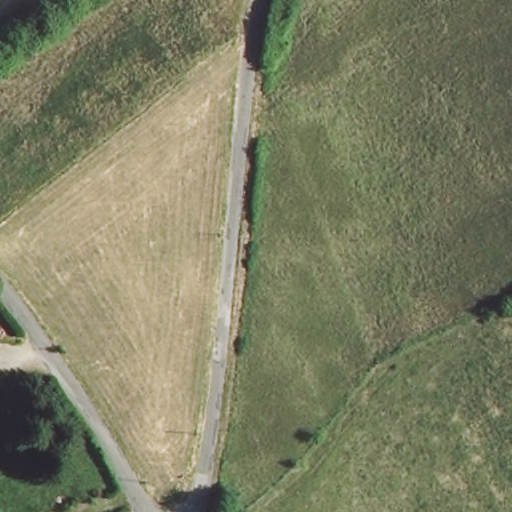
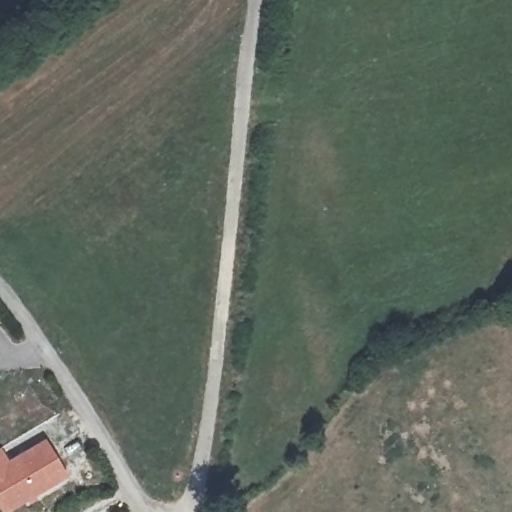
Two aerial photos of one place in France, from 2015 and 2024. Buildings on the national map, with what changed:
new [(8,460),(45,438),(69,479),(11,512),(0,512),(0,447),(1,447),(8,460)]

